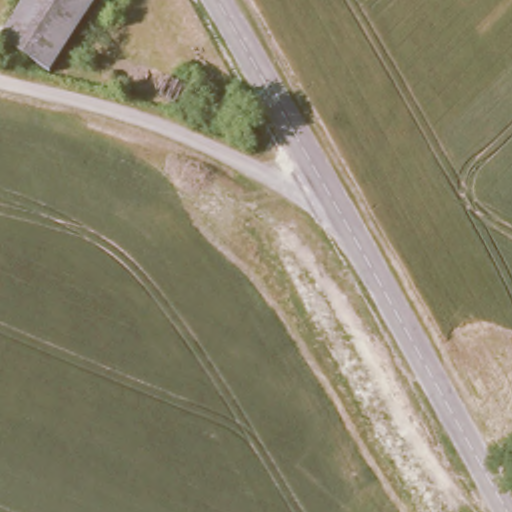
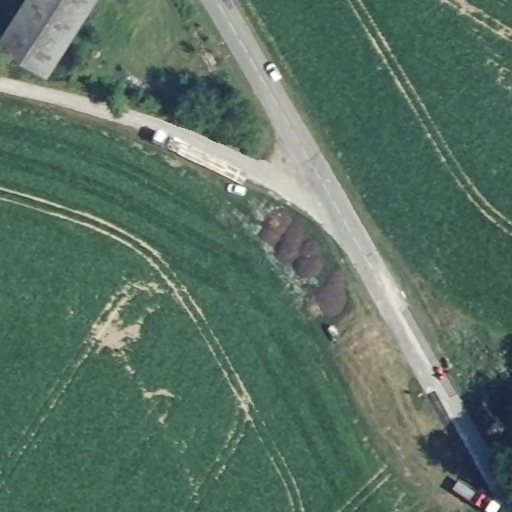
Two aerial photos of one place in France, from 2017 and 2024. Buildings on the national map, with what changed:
unchanged [(0,41),(0,30),(20,0),(95,0),(49,71),(0,41)]

